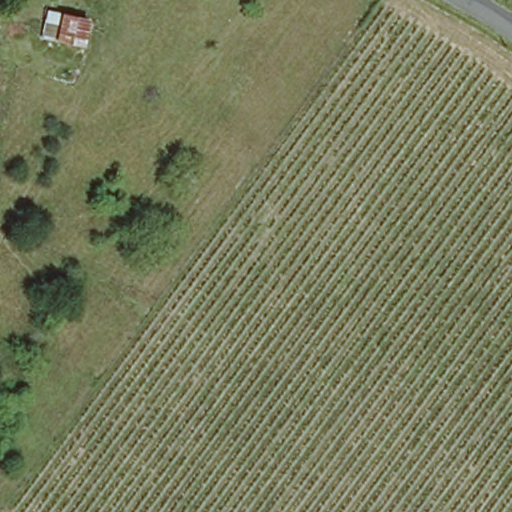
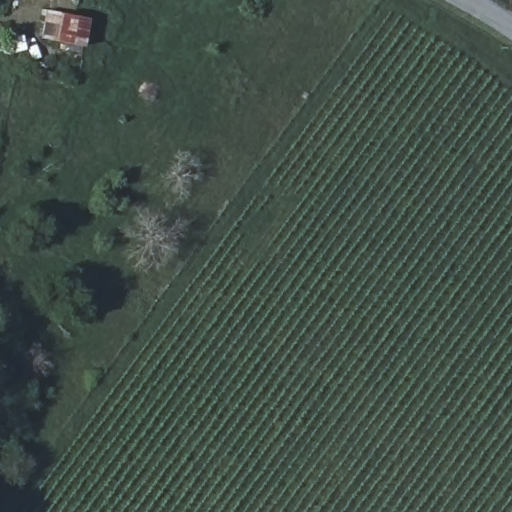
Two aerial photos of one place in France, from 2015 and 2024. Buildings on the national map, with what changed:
unchanged [(84,50),(80,56),(53,54),(54,45),(41,38),(43,11),(61,12),(89,22),(84,50)]

